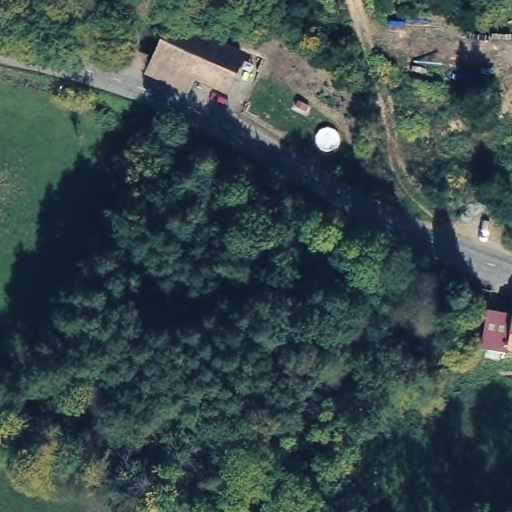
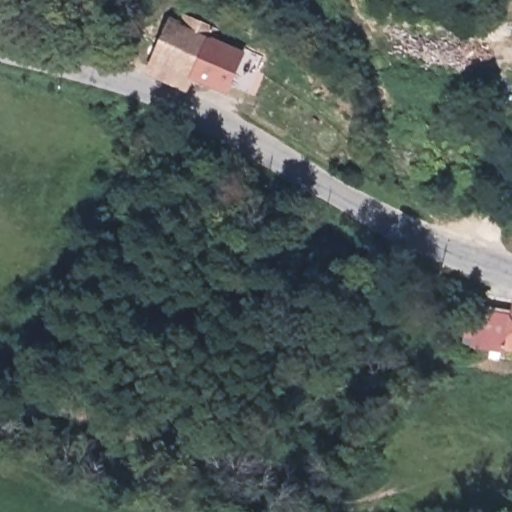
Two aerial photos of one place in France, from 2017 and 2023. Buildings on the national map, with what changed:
unchanged [(185,13),(216,29),(211,41),(233,53),(238,44),(266,59),(259,73),(239,63),(224,94),(154,59),(151,65),(129,53),(135,40),(143,44),(156,16),(171,22),(178,26),(185,13)]
unchanged [(138,196),(158,206),(145,236),(142,255),(164,265),(156,282),(111,260),(123,225),(138,196)]
unchanged [(512,303),(512,345),(504,344),(504,349),(480,345),(485,307),(510,311),(512,303)]

